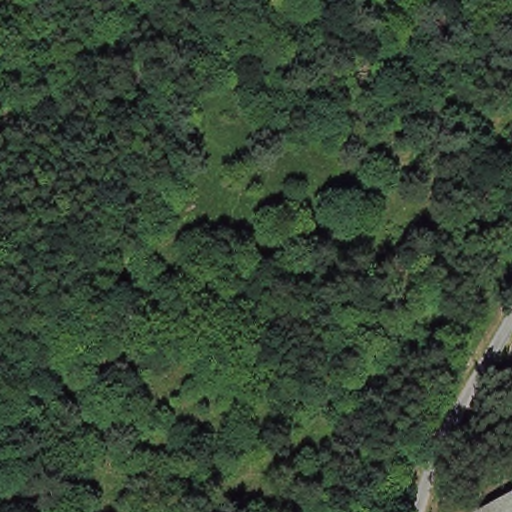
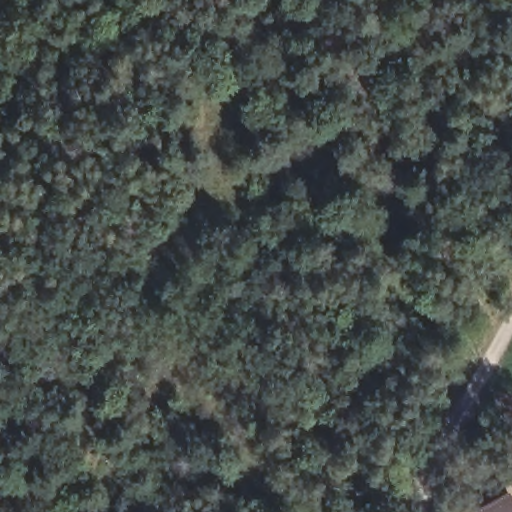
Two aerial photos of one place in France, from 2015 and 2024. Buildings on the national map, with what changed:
unchanged [(507,498),(512,508),(512,512),(493,512),(490,507),(507,498)]

